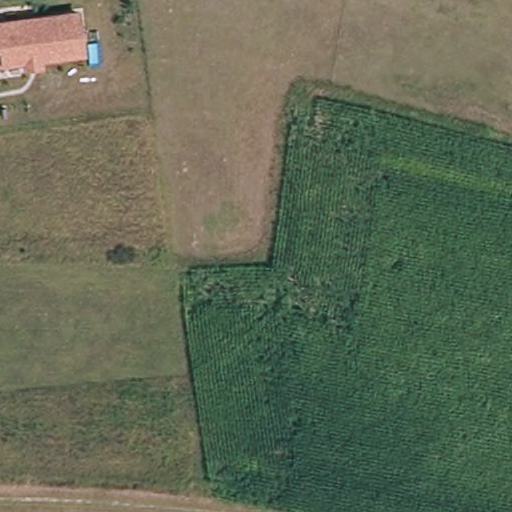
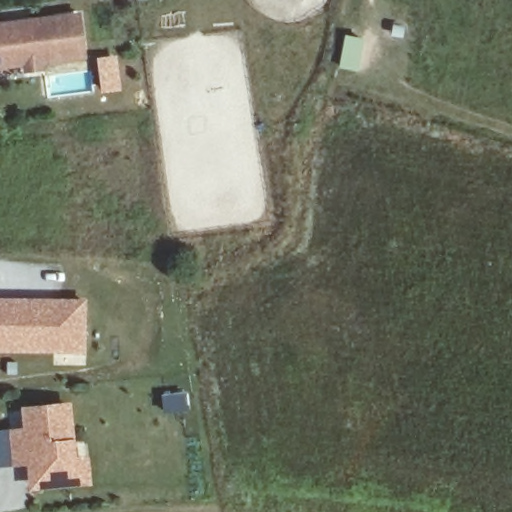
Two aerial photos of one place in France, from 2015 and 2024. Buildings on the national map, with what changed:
unchanged [(25,71),(25,63),(0,66),(0,24),(77,16),(82,56),(40,61),(40,69),(25,71)]
new [(88,298),(87,353),(0,352),(0,297),(88,298)]
new [(21,408),(74,402),(79,457),(91,456),(94,485),(31,492),(29,463),(11,467),(8,431),(23,429),(21,408)]

